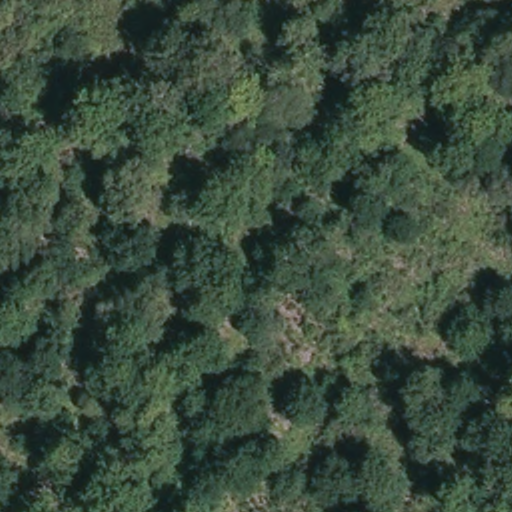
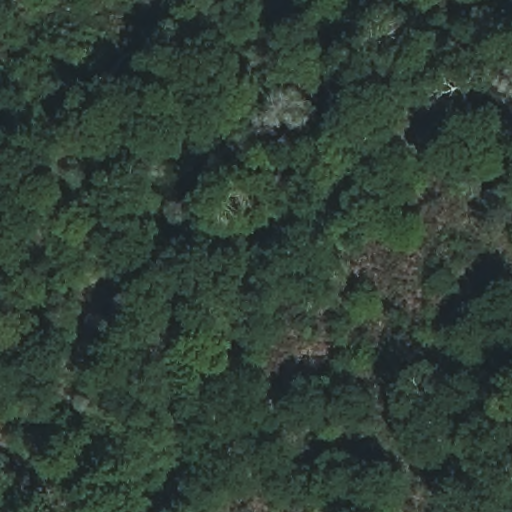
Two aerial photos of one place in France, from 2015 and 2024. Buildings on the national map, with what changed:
[]

